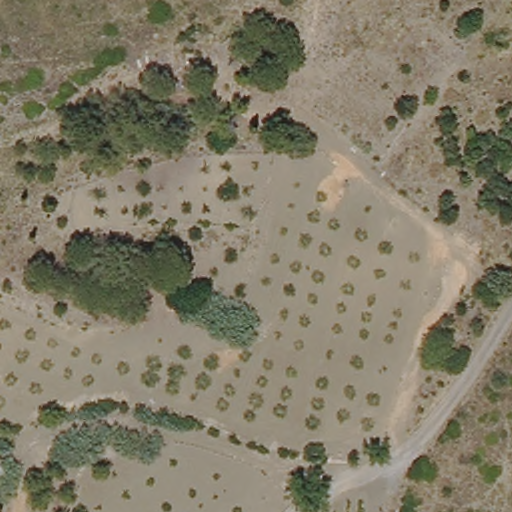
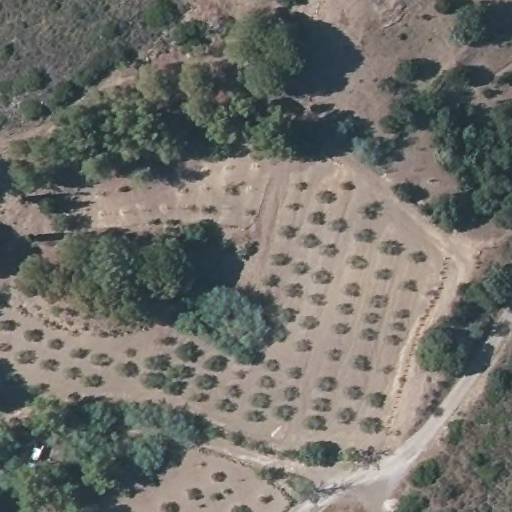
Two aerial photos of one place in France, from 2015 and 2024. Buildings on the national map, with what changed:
unchanged [(0,477),(0,455),(9,474),(0,477)]

